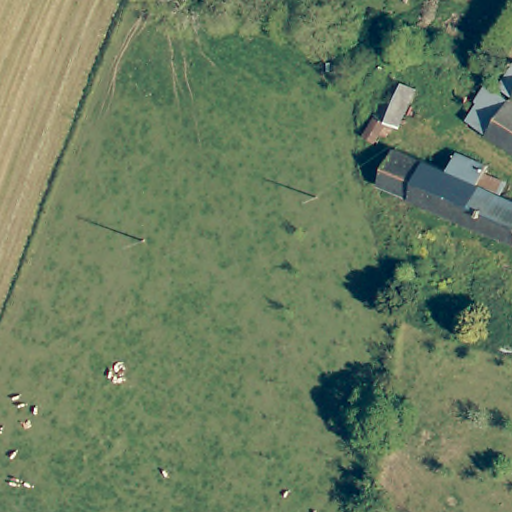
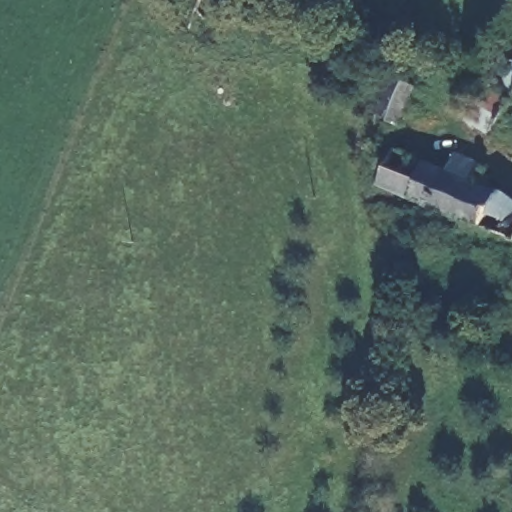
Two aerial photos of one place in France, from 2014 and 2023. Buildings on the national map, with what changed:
unchanged [(496,58),(496,65),(493,70),(485,73),(480,71),(480,63),(484,57),(490,55),(496,58)]
unchanged [(512,61),(512,90),(498,81),(512,61)]
unchanged [(366,133),(378,109),(396,72),(422,84),(401,121),(391,116),(378,139),(366,133)]
unchanged [(486,130),(465,118),(489,82),(510,95),(486,130)]
unchanged [(512,147),(486,130),(510,95),(512,97),(512,147)]
unchanged [(391,148),(451,173),(459,154),(488,167),(485,175),(511,186),(506,197),(512,199),(512,240),(377,186),(391,148)]

